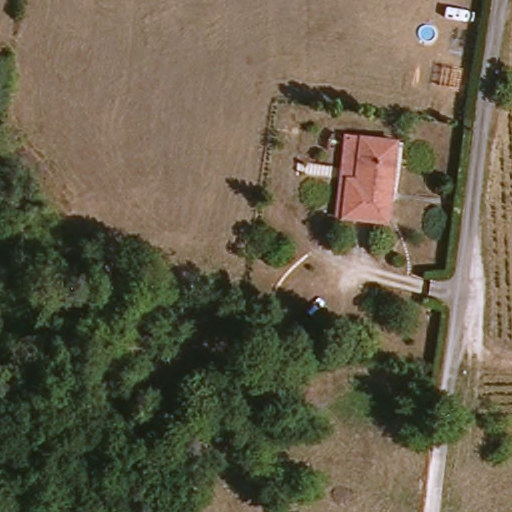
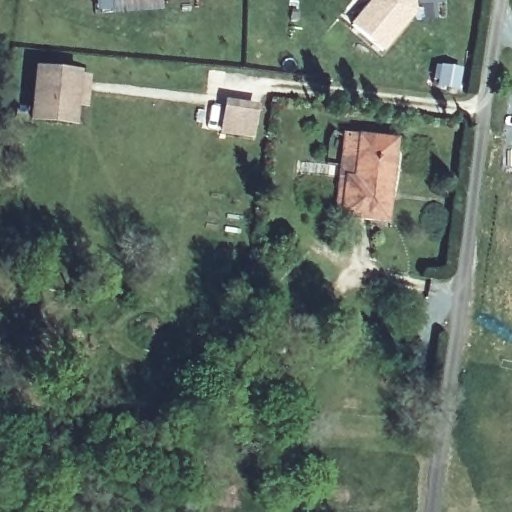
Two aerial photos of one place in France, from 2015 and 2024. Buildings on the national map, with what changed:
new [(416,11),(382,52),(349,25),(369,0),(415,0),(416,11)]
new [(82,70),(77,126),(29,122),(33,67),(82,70)]
new [(258,104),(253,139),(220,135),(225,100),(258,104)]
unchanged [(392,225),(347,222),(340,221),(346,140),(362,141),(397,144),(392,225)]

